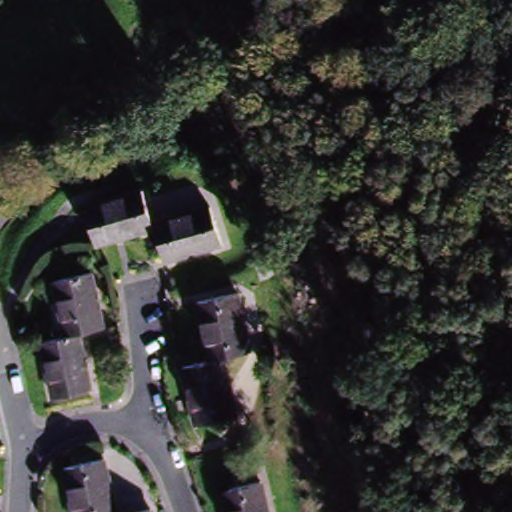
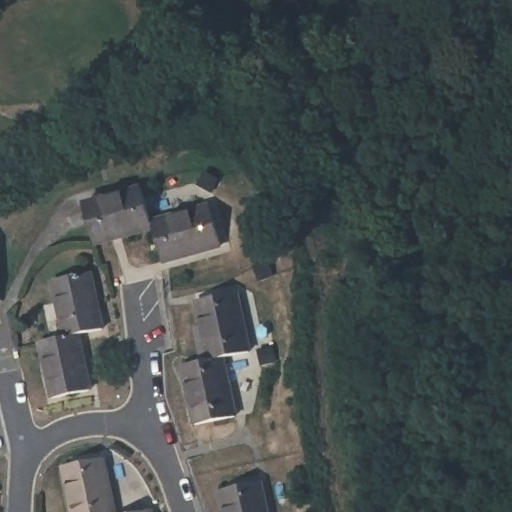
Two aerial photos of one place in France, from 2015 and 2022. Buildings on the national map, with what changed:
unchanged [(199,0),(199,1),(174,14),(167,1),(169,0),(199,0)]
unchanged [(153,227),(95,242),(85,203),(143,188),(153,222),(153,227)]
unchanged [(221,246),(163,261),(153,227),(153,222),(211,207),(221,246)]
unchanged [(64,341),(64,340),(49,282),(88,272),(103,331),(78,337),(64,341)]
unchanged [(203,366),(188,308),(227,298),(242,356),(216,363),(203,366)]
unchanged [(64,340),(64,341),(78,337),(91,396),(52,404),(39,345),(64,340)]
unchanged [(203,366),(216,363),(231,421),(191,431),(177,372),(203,366)]
unchanged [(59,472),(98,463),(108,512),(67,512),(59,472)]
unchanged [(256,487),(261,512),(220,512),(216,495),(256,487)]

